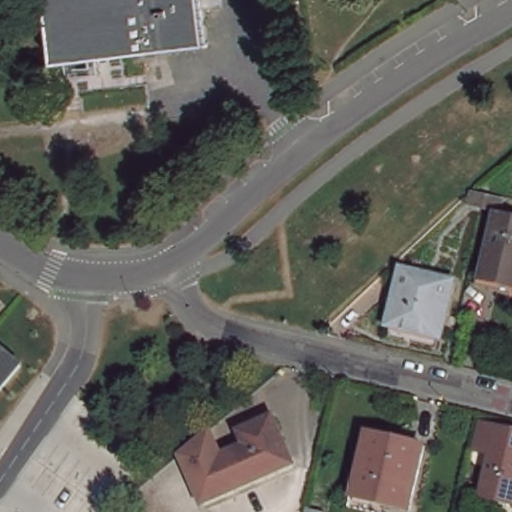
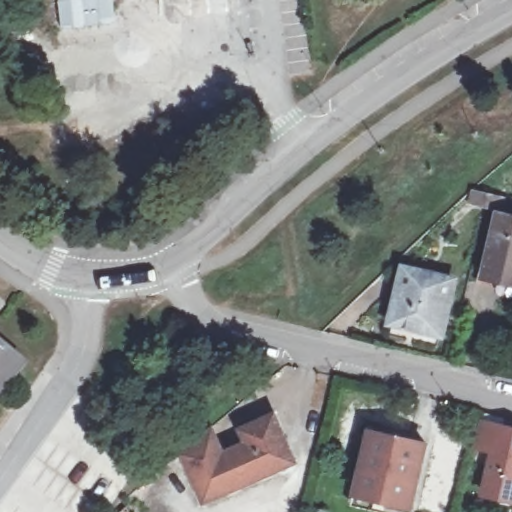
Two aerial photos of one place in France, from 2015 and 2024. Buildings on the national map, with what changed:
demolished [(130,52),(110,54),(60,59),(54,0),(209,0),(210,7),(188,9),(193,45),(130,52)]
new [(61,29),(57,0),(113,0),(115,21),(61,29)]
unchanged [(504,222),(490,219),(479,218),(480,212),(489,204),(493,204),(507,207),(504,222)]
unchanged [(506,223),(512,225),(512,287),(492,281),(506,223)]
unchanged [(391,323),(404,267),(451,278),(439,334),(391,323)]
unchanged [(21,362),(0,387),(0,344),(21,362)]
unchanged [(511,350),(512,351),(512,375),(504,373),(511,350)]
unchanged [(215,432),(223,457),(248,448),(245,435),(278,424),(294,473),(203,506),(186,458),(215,432)]
unchanged [(512,434),(512,506),(487,499),(498,456),(478,451),(484,426),(512,434)]
unchanged [(358,494),(372,432),(431,446),(414,508),(358,494)]

